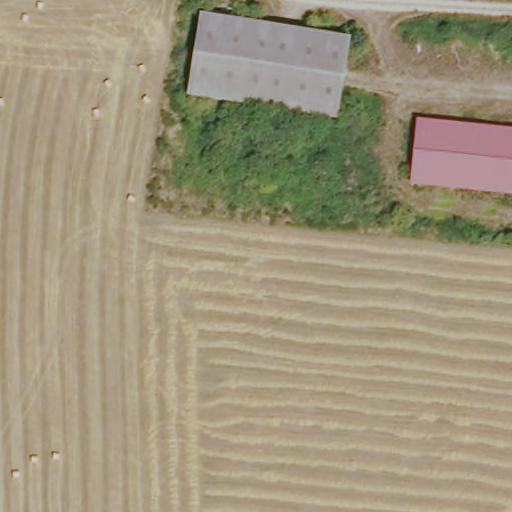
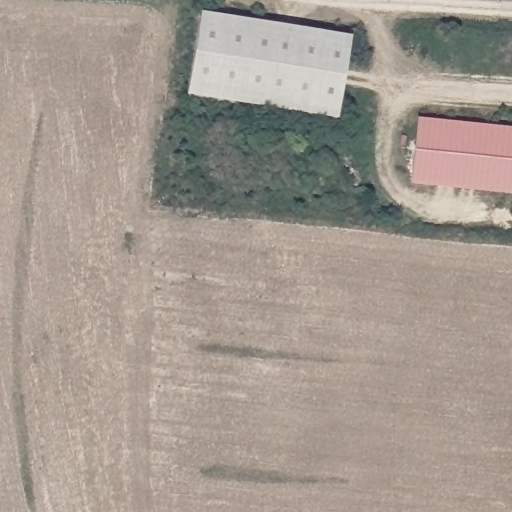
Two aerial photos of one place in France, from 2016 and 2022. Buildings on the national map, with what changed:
unchanged [(339,119),(188,102),(198,20),(349,37),(339,119)]
unchanged [(407,187),(411,127),(512,133),(512,195),(407,187)]

